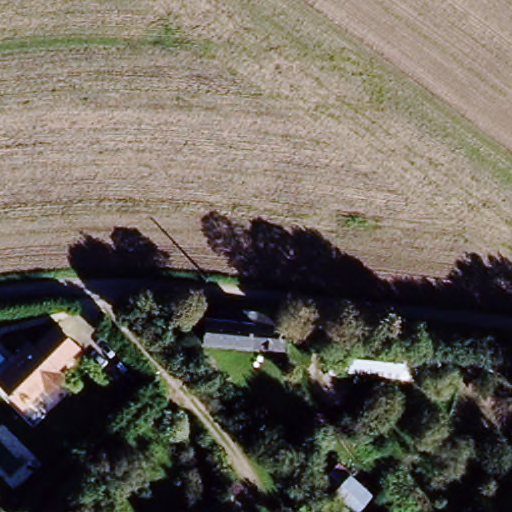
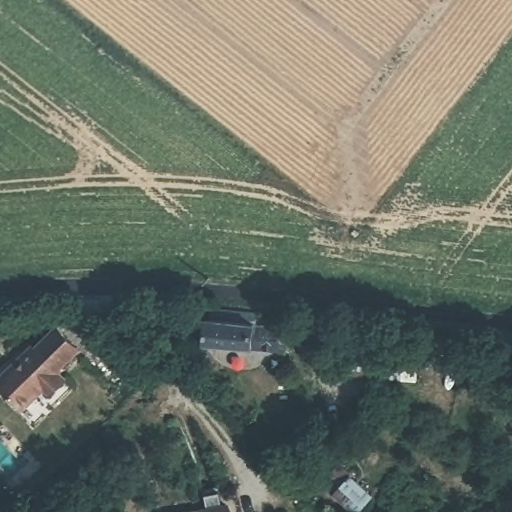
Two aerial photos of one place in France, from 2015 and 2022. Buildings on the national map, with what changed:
unchanged [(283,320),(280,361),(189,355),(194,315),(283,320)]
unchanged [(54,325),(82,347),(61,372),(32,343),(54,325)]
unchanged [(402,345),(400,383),(327,379),(333,340),(402,345)]
unchanged [(32,343),(61,372),(68,378),(46,400),(37,390),(17,410),(0,393),(0,369),(32,343)]
unchanged [(313,478),(322,470),(355,502),(346,511),(313,478)]
unchanged [(231,506),(232,512),(189,512),(231,506)]

